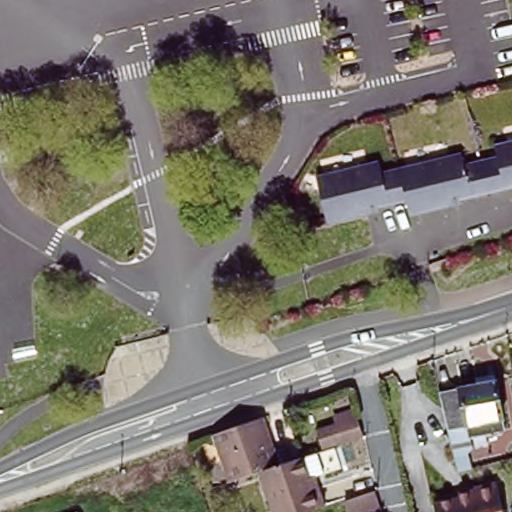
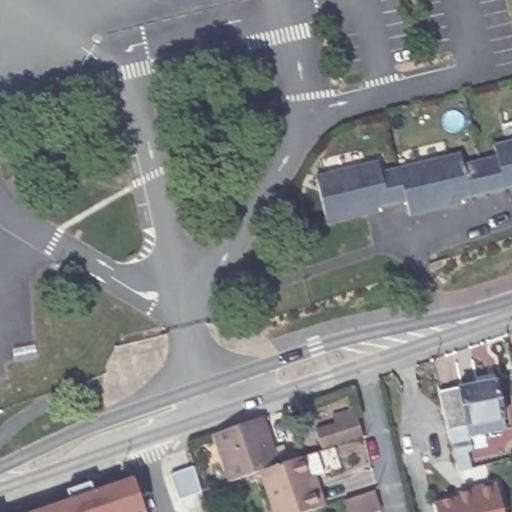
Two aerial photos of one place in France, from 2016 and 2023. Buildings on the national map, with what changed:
unchanged [(373,174),(453,153),(457,164),(490,155),(487,144),(512,137),(512,185),(441,203),(442,207),(402,217),(398,203),(358,213),(360,217),(320,227),(307,180),(370,163),(373,174)]
unchanged [(468,434),(472,446),(467,451),(470,469),(457,472),(440,392),(497,381),(506,427),(468,434)]
unchanged [(325,449),(319,429),(357,417),(362,436),(325,449)]
unchanged [(261,471),(230,481),(222,460),(227,452),(225,446),(221,447),(217,434),(262,418),(272,448),(285,445),(289,461),(261,471)]
unchanged [(273,512),(261,471),(289,461),(302,457),(309,479),(315,478),(318,489),(323,507),(308,512),(273,512)]
new [(147,511),(147,512),(36,512),(133,479),(147,511)]
unchanged [(461,499),(460,492),(476,488),(497,483),(503,512),(435,512),(434,505),(461,499)]
unchanged [(375,490),(380,509),(370,512),(346,512),(342,500),(375,490)]

